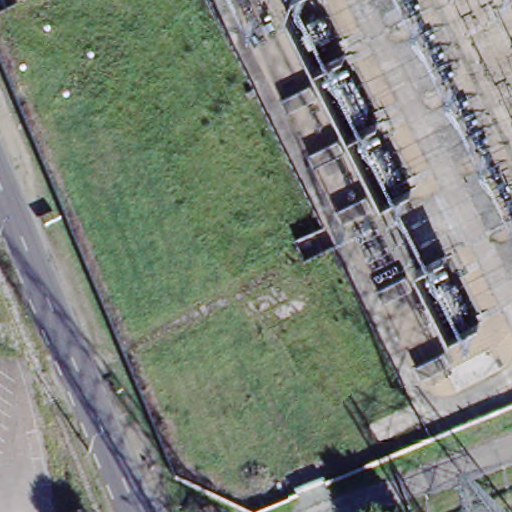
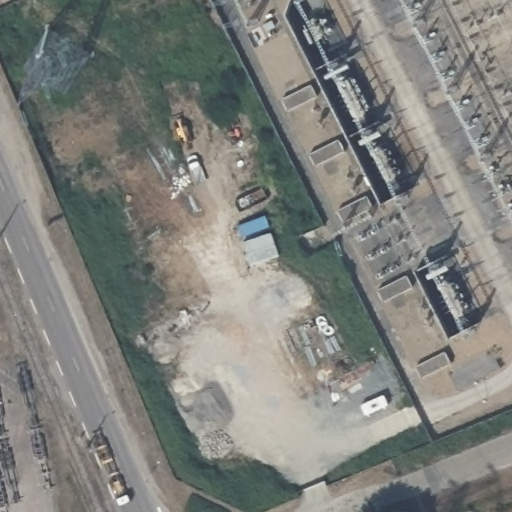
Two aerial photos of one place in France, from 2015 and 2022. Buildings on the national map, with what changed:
unchanged [(317,93),(287,108),(281,96),(310,81),(317,93)]
unchanged [(345,149),(315,163),(309,150),(338,136),(345,149)]
unchanged [(373,205),(343,220),(337,207),(366,192),(373,205)]
unchanged [(412,284),(383,299),(377,287),(406,272),(412,284)]
unchanged [(452,422),(461,418),(464,423),(455,427),(452,422)]

